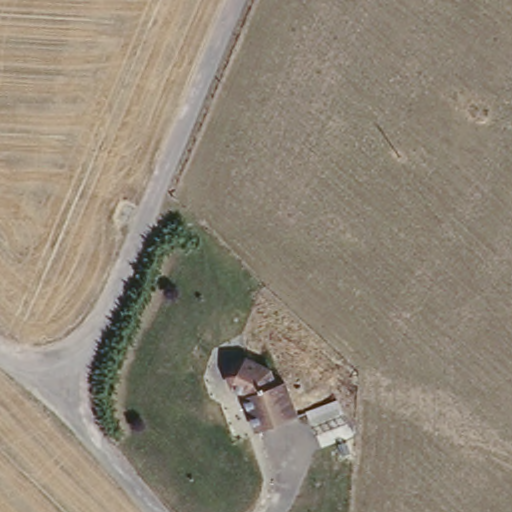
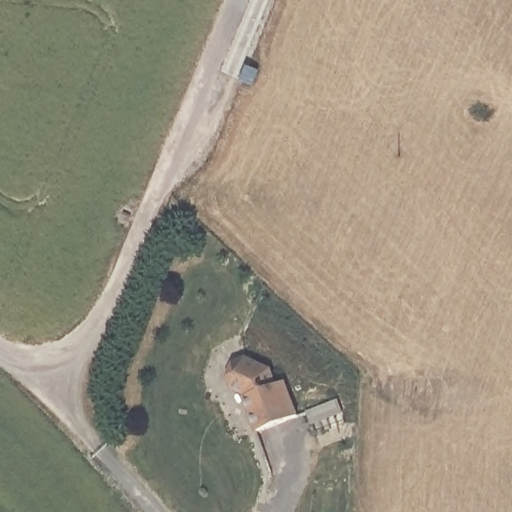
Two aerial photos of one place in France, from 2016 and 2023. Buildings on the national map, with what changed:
unchanged [(251,403),(257,399),(248,389),(234,385),(247,353),(280,370),(286,379),(299,421),(262,432),(251,403)]

